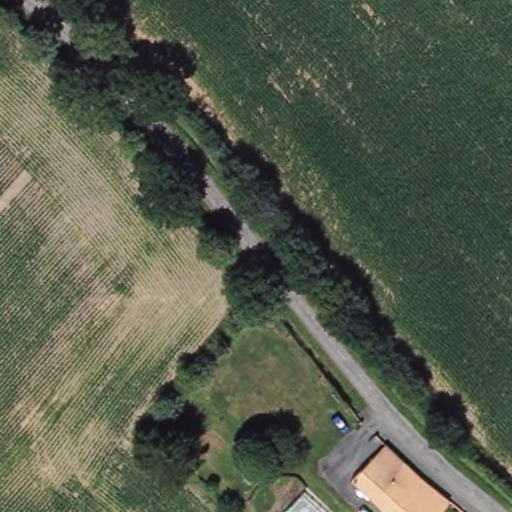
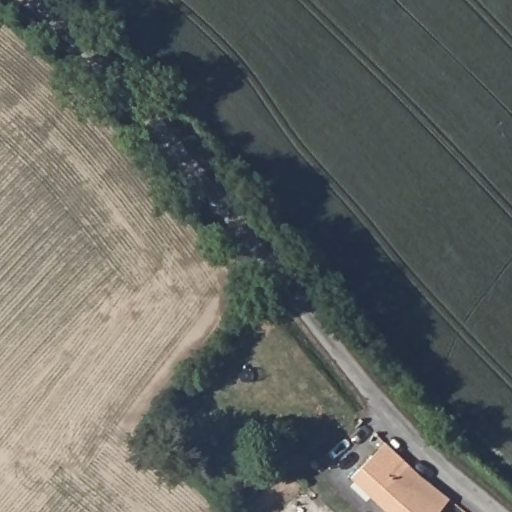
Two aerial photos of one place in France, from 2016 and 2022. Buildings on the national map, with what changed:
unchanged [(362,481),(383,456),(392,447),(427,479),(452,505),(445,512),(395,512),(362,481)]

